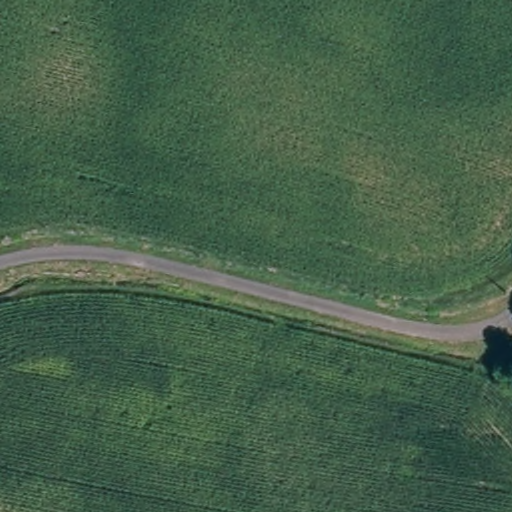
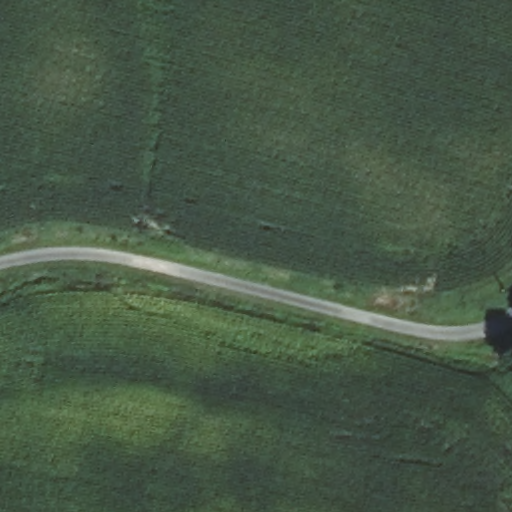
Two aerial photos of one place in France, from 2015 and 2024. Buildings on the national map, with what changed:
[]

